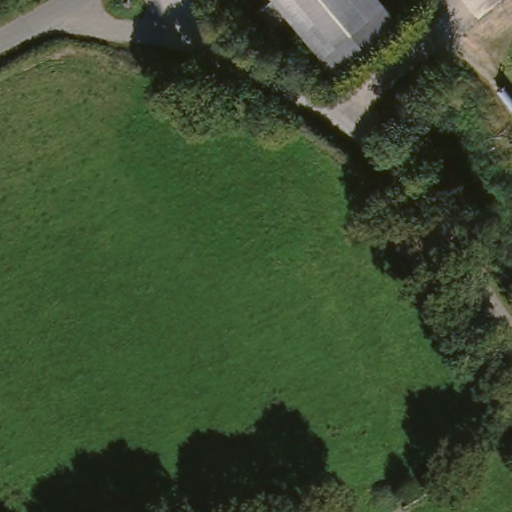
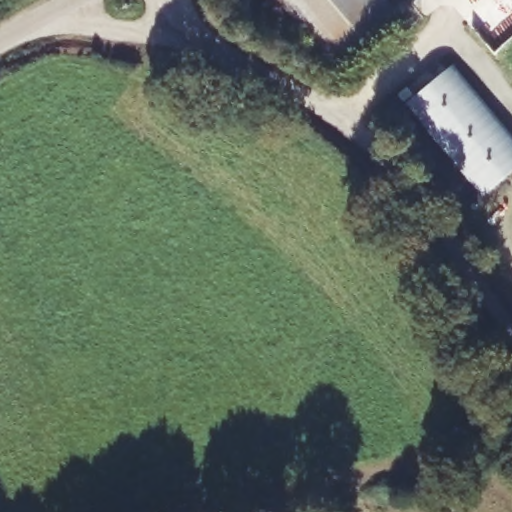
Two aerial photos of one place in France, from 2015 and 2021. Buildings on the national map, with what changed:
unchanged [(337,73),(297,20),(275,37),(255,10),(268,0),(382,0),(400,24),(337,73)]
new [(512,133),(512,169),(484,194),(406,102),(452,63),(512,133)]

